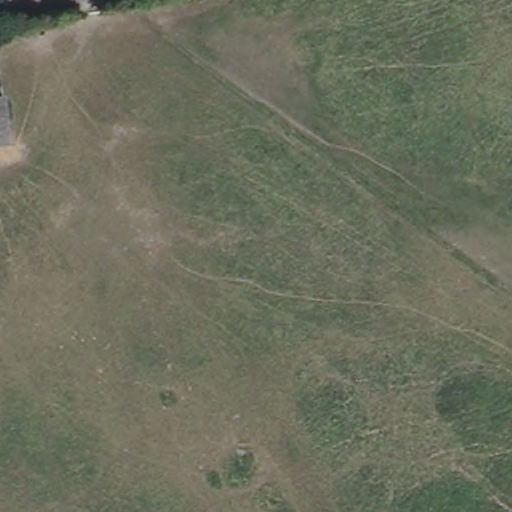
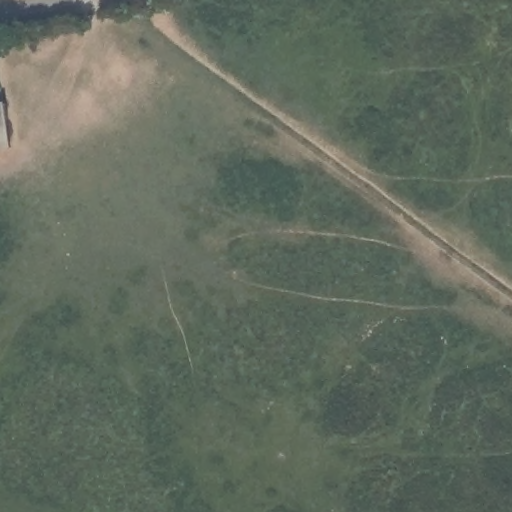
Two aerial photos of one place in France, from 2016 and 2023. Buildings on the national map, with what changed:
unchanged [(0,146),(0,97),(2,97),(9,145),(0,146)]

